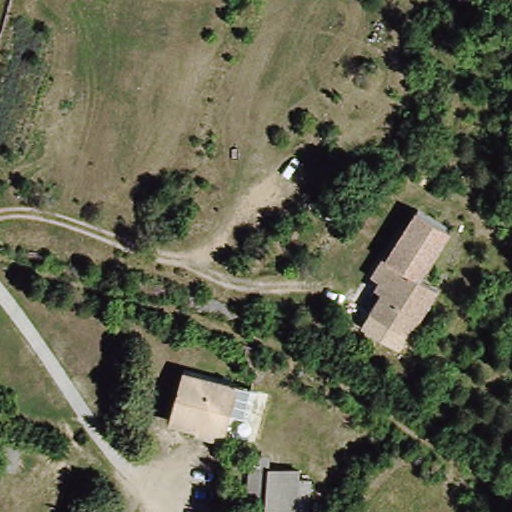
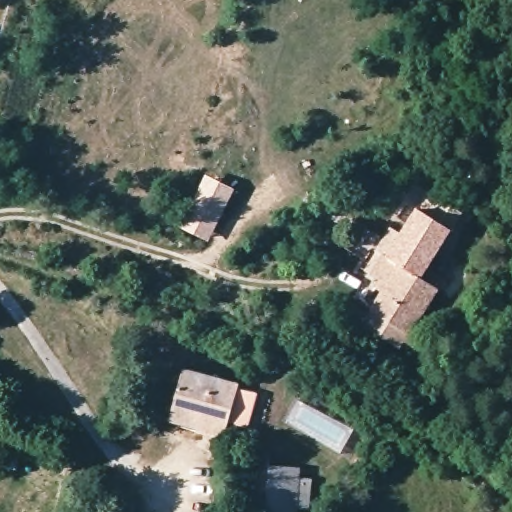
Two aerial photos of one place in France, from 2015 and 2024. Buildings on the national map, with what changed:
new [(230,187),(209,235),(187,225),(209,178),(230,187)]
unchanged [(359,321),(367,307),(383,281),(368,271),(380,250),(384,252),(415,203),(452,226),(423,275),(435,285),(407,332),(398,346),(359,321)]
unchanged [(179,428),(181,421),(170,415),(183,367),(242,383),(229,425),(224,441),(179,428)]
unchanged [(295,512),(244,512),(248,464),(297,468),(295,512)]

